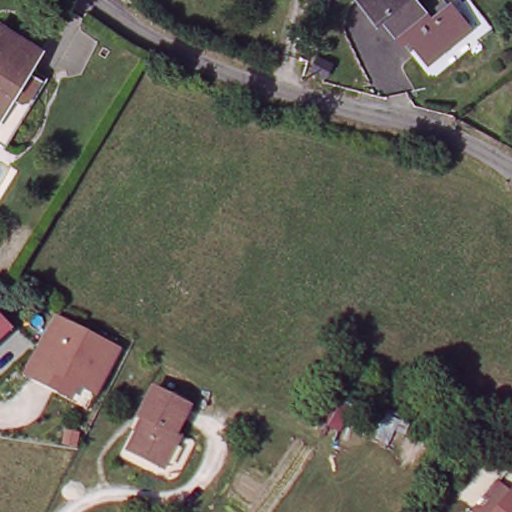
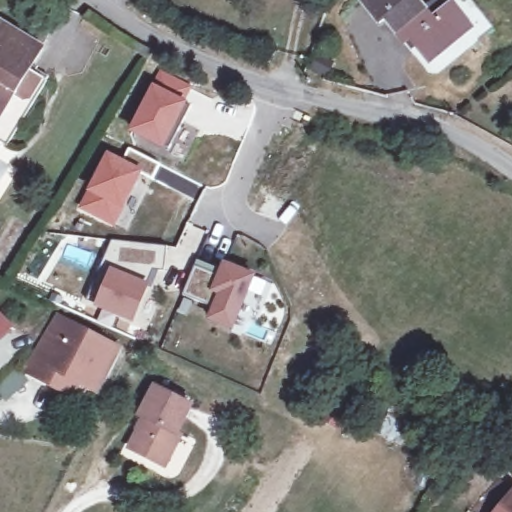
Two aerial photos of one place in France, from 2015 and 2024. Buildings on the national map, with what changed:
unchanged [(475,31),(432,64),(413,41),(407,46),(388,22),(382,26),(361,0),(362,0),(418,0),(436,22),(455,8),(475,31)]
unchanged [(24,39),(34,23),(48,32),(50,38),(42,50),(45,52),(32,74),(47,83),(8,149),(0,144),(0,31),(2,26),(24,39)]
unchanged [(330,72),(314,67),(320,51),(335,57),(330,72)]
new [(192,85),(182,100),(188,102),(165,147),(130,128),(155,84),(165,71),(192,85)]
new [(87,189),(109,152),(122,159),(130,148),(159,163),(152,179),(142,173),(123,210),(117,226),(80,208),(87,189)]
new [(168,245),(166,270),(158,271),(151,287),(137,321),(97,304),(87,300),(112,241),(168,245)]
new [(198,260),(221,269),(225,262),(257,275),(235,329),(207,317),(213,304),(185,294),(198,260)]
unchanged [(0,316),(12,328),(0,339),(0,316)]
unchanged [(120,347),(97,393),(83,385),(72,399),(26,373),(60,318),(120,347)]
unchanged [(345,395),(353,375),(365,380),(357,400),(345,395)]
unchanged [(157,386),(193,404),(179,432),(182,434),(167,465),(132,447),(147,418),(143,416),(157,386)]
unchanged [(512,491),(512,512),(495,512),(512,491)]

